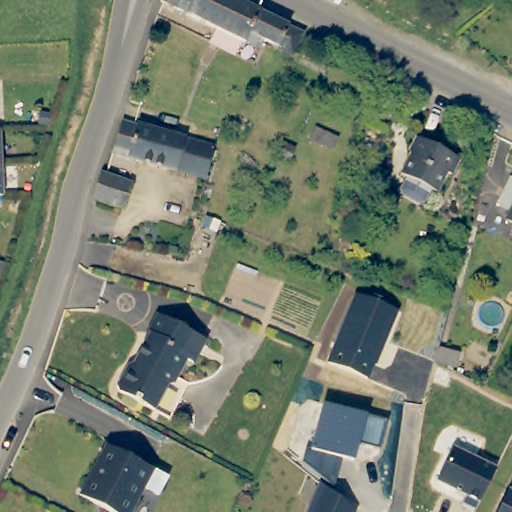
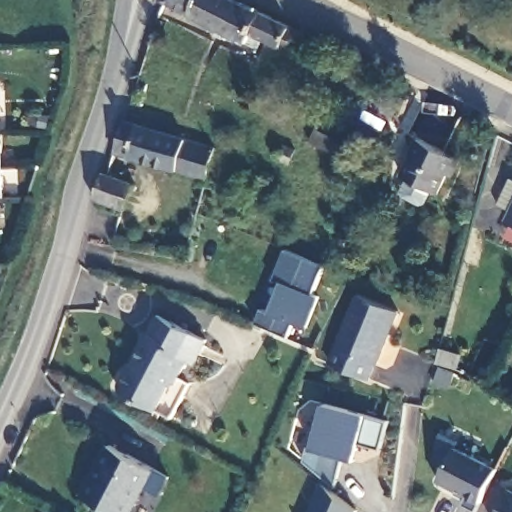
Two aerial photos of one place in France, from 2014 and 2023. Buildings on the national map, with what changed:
unchanged [(233,0),(306,34),(305,39),(299,53),(290,49),(257,34),(248,46),(166,5),(168,0),(233,0)]
demolished [(114,69),(94,60),(101,44),(119,51),(114,69)]
unchanged [(179,136),(169,169),(110,149),(118,116),(179,136)]
unchanged [(179,136),(213,145),(203,179),(169,169),(179,136)]
unchanged [(462,160),(456,174),(450,178),(440,195),(406,179),(416,158),(415,151),(422,139),(462,160)]
unchanged [(99,170),(124,183),(112,213),(86,202),(99,170)]
unchanged [(502,205),(512,182),(512,210),(502,205)]
new [(264,308),(272,311),(284,283),(275,279),(288,249),(329,264),(317,294),(323,296),(309,328),(298,323),(292,337),(258,323),(264,308)]
unchanged [(328,363),(357,294),(397,313),(368,380),(328,363)]
unchanged [(194,363),(188,359),(178,378),(190,384),(170,418),(118,389),(158,314),(172,321),(208,338),(206,341),(194,363)]
unchanged [(454,344),(475,349),(471,369),(449,364),(454,344)]
unchanged [(302,462),(305,448),(312,450),(323,404),(367,416),(387,423),(378,450),(359,445),(354,463),(344,459),(335,488),(302,462)]
unchanged [(155,468),(131,512),(113,512),(79,494),(108,443),(155,468)]
unchanged [(463,504),(466,496),(438,482),(454,447),(497,468),(476,511),(463,504)]
unchanged [(320,483),(357,509),(356,512),(308,512),(320,483)]
unchanged [(509,489),(512,491),(512,512),(499,512),(509,489)]

